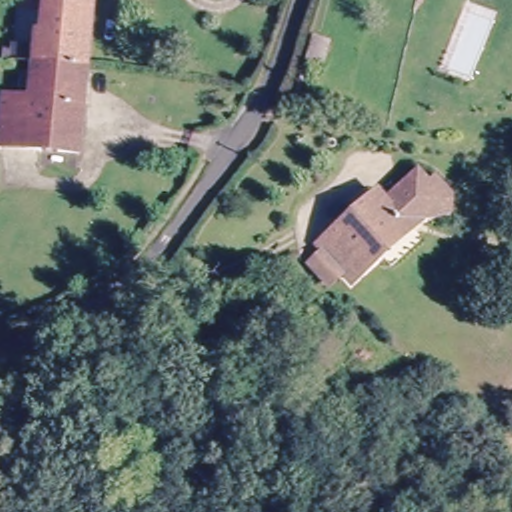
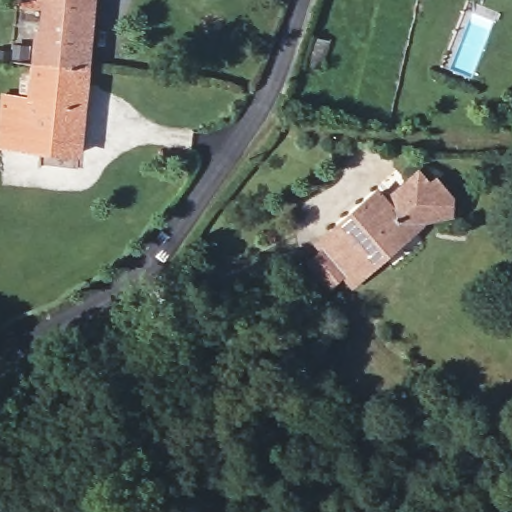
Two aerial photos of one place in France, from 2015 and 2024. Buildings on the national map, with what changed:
unchanged [(0,149),(0,91),(17,92),(19,71),(28,72),(33,25),(39,25),(41,0),(95,0),(81,157),(0,149)]
unchanged [(315,35),(332,41),(322,72),(305,66),(315,35)]
unchanged [(441,192),(446,187),(462,204),(457,221),(413,232),(379,258),(384,264),(353,289),(322,249),(366,215),(384,201),(390,206),(394,210),(406,200),(429,181),(437,188),(441,192)]

